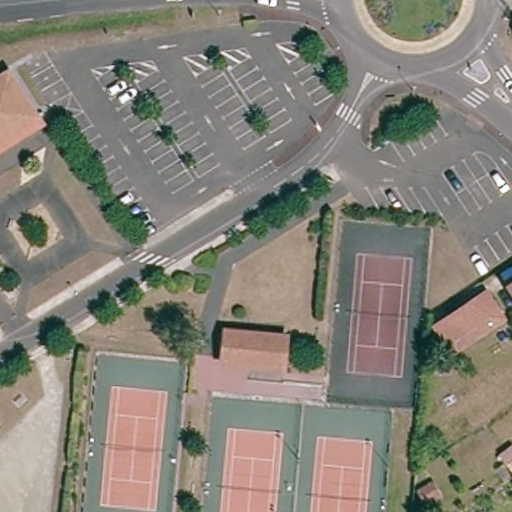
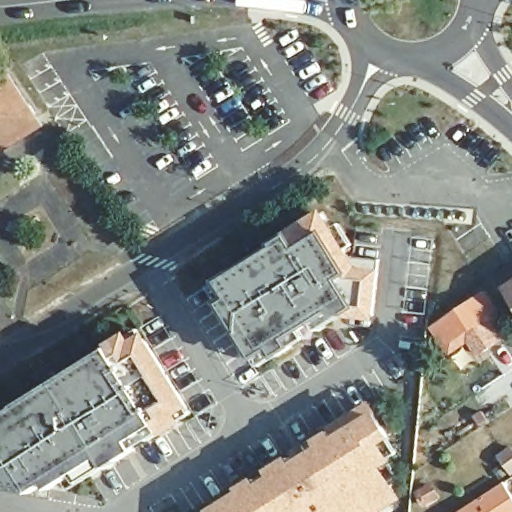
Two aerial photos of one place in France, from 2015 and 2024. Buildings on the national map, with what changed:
unchanged [(0,81),(29,124),(0,143),(0,81)]
unchanged [(35,133),(0,155),(0,143),(29,124),(35,133)]
new [(352,318),(349,314),(297,348),(278,358),(277,356),(260,367),(221,302),(215,285),(219,279),(275,244),(273,242),(291,230),(292,228),(325,207),(361,267),(383,269),(377,320),(352,318)]
unchanged [(446,346),(436,329),(486,294),(502,319),(484,331),(452,354),(446,346)]
new [(107,467),(82,482),(76,472),(51,489),(47,483),(37,489),(0,485),(0,417),(110,347),(110,341),(129,330),(134,339),(146,330),(193,407),(180,414),(186,423),(165,437),(136,449),(107,467)]
demolished [(287,342),(284,373),(222,367),(225,336),(287,342)]
new [(383,512),(211,512),(209,509),(240,490),(237,487),(255,476),(259,483),(270,475),(266,469),(288,455),(292,462),(318,446),(315,440),(330,430),(335,435),(377,409),(395,438),(385,444),(395,461),(385,467),(405,498),(383,512)]
unchanged [(500,456),(512,447),(512,474),(500,456)]
unchanged [(432,466),(440,477),(432,482),(443,499),(426,508),(417,492),(423,488),(416,476),(432,466)]
new [(505,483),(512,492),(512,512),(460,512),(505,483)]

